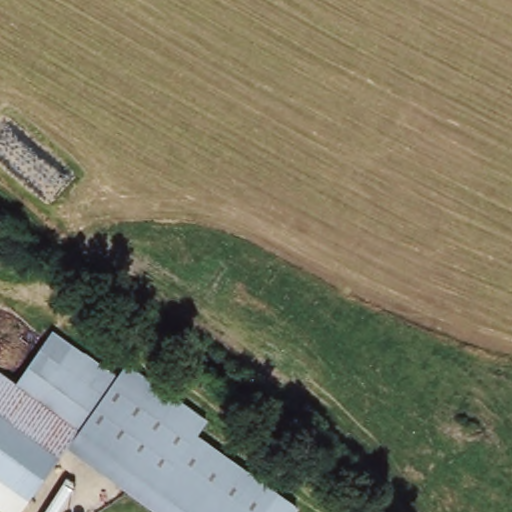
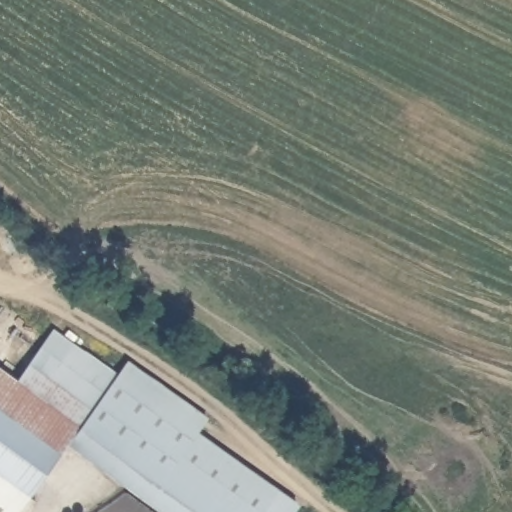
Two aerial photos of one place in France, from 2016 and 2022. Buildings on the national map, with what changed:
unchanged [(21,510),(0,495),(0,367),(17,381),(56,329),(118,374),(129,359),(212,419),(201,434),(301,507),(297,512),(156,512),(67,447),(21,510)]
unchanged [(19,512),(0,512),(0,495),(21,510),(19,512)]

